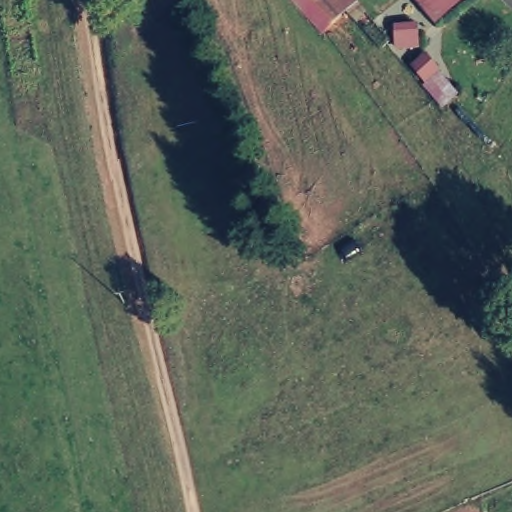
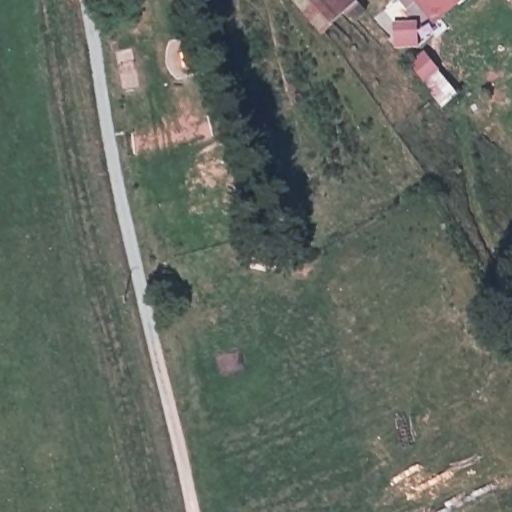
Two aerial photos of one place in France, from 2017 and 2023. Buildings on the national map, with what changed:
unchanged [(357,21),(347,11),(324,30),(301,0),(359,0),(360,1),(370,12),(357,21)]
unchanged [(430,18),(416,0),(451,0),(430,18)]
unchanged [(412,23),(412,37),(399,38),(398,23),(412,23)]
unchanged [(442,107),(410,61),(427,50),(459,93),(442,107)]

